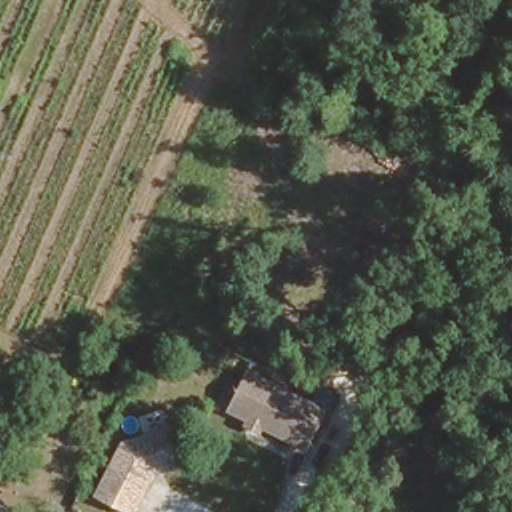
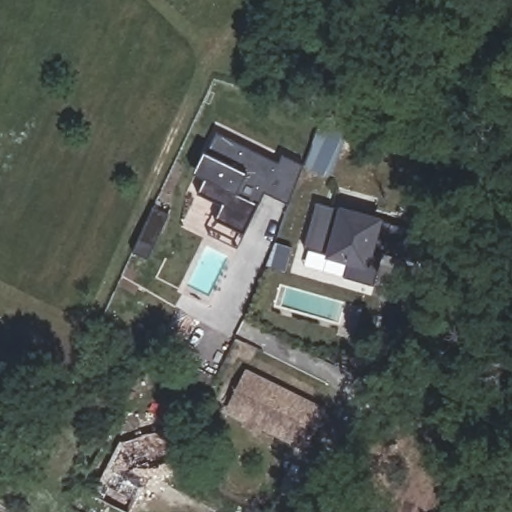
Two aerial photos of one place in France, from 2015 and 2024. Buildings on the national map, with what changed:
new [(244,233),(215,220),(222,205),(197,194),(203,178),(193,174),(204,151),(215,132),(278,163),(282,154),(304,165),(288,203),(264,192),(258,203),(244,233)]
new [(338,211),(340,206),(383,217),(382,222),(391,224),(427,229),(420,263),(381,255),(375,284),(345,278),(348,264),(324,258),(325,254),(305,248),(317,204),(338,211)]
new [(155,207),(171,214),(151,259),(135,252),(155,207)]
unchanged [(323,409),(305,447),(260,425),(258,420),(252,417),(248,419),(227,409),(246,371),(323,409)]
unchanged [(174,427),(184,464),(163,470),(158,467),(152,469),(128,512),(95,493),(124,441),(174,427)]
unchanged [(0,489),(0,485),(15,453),(54,473),(35,512),(28,512),(8,502),(12,494),(0,489)]
unchanged [(0,512),(0,507),(8,512),(0,512)]

